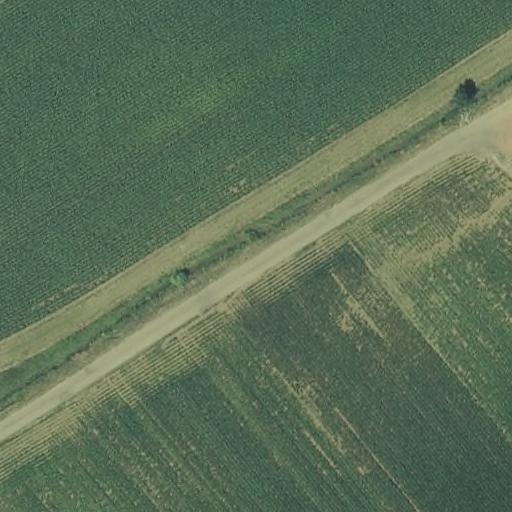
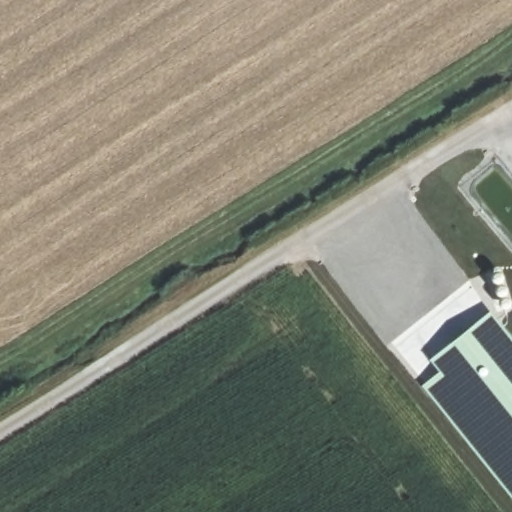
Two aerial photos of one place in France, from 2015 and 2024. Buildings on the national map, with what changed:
new [(421,382),(437,367),(430,357),(487,310),(512,340),(512,497),(421,382)]

